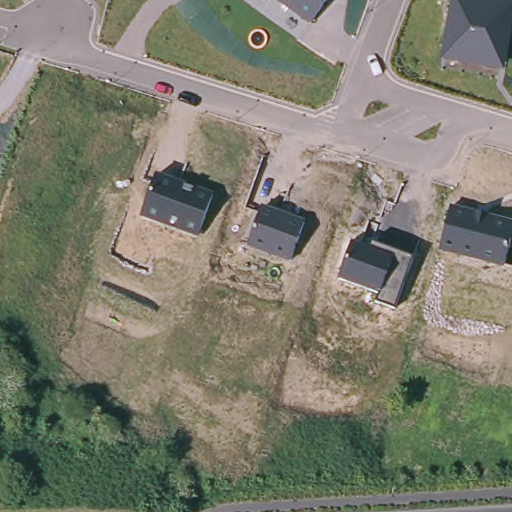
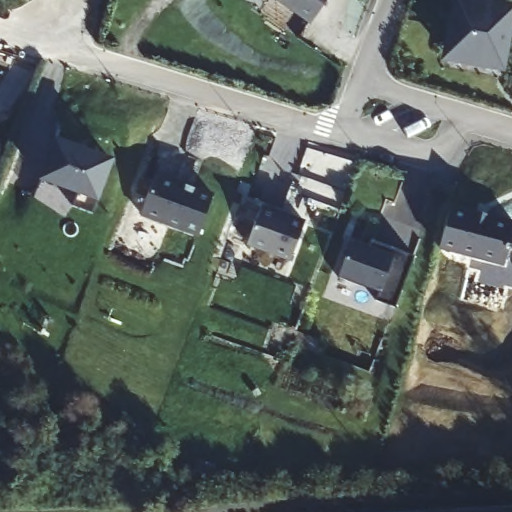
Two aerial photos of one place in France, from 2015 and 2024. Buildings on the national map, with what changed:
unchanged [(276,0),(326,0),(310,25),(276,0)]
unchanged [(441,60),(451,0),(497,0),(512,3),(512,24),(503,71),(441,60)]
new [(115,168),(99,207),(43,186),(57,146),(115,168)]
unchanged [(198,237),(139,216),(155,173),(213,193),(198,237)]
unchanged [(303,219),(289,261),(246,246),(261,204),(303,219)]
unchanged [(439,249),(449,204),(512,221),(512,232),(504,266),(439,249)]
unchanged [(412,257),(393,307),(375,300),(378,292),(338,277),(352,240),(369,248),(372,240),(412,257)]
new [(512,248),(512,270),(502,268),(508,247),(512,248)]

